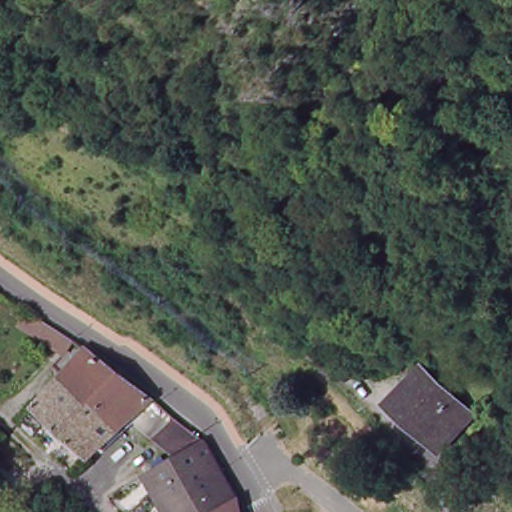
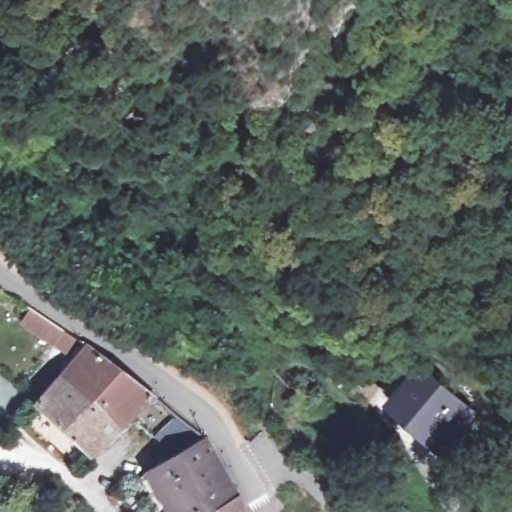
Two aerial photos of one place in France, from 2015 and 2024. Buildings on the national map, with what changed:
unchanged [(67,354),(59,349),(24,324),(26,321),(35,311),(79,340),(67,354)]
unchanged [(156,437),(132,418),(91,454),(38,405),(74,363),(76,361),(89,346),(155,396),(178,415),(208,440),(179,456),(156,437)]
unchanged [(468,410),(441,442),(395,402),(423,370),(468,410)]
unchanged [(242,499),(244,511),(244,512),(219,512),(218,512),(169,512),(148,474),(167,464),(179,456),(208,440),(242,499)]

